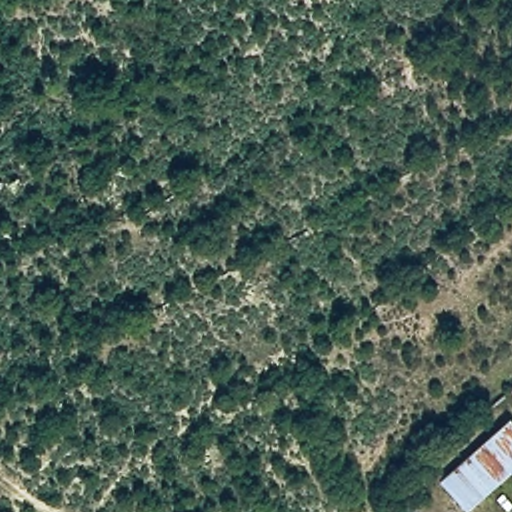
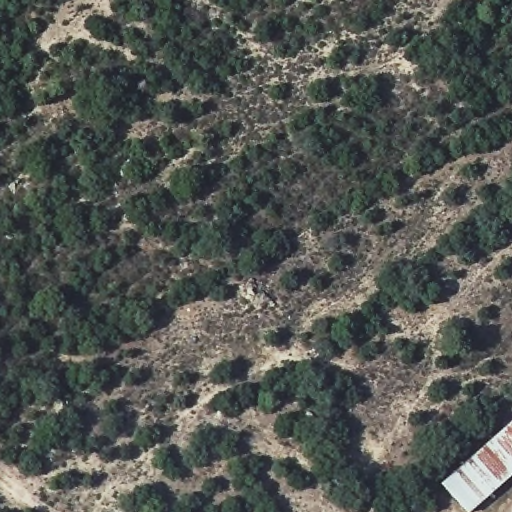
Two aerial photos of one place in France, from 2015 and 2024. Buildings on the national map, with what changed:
unchanged [(473,512),(469,512),(442,482),(510,420),(512,422),(512,476),(473,512)]

